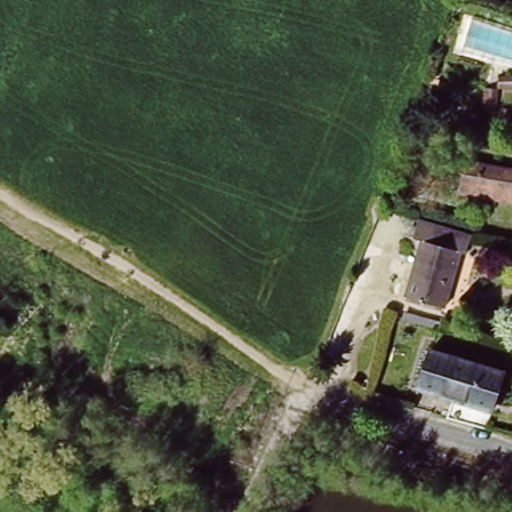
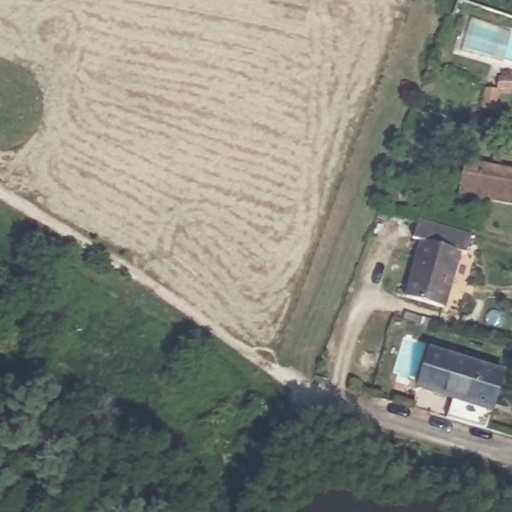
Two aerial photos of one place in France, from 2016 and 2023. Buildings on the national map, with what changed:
unchanged [(497,83),(497,106),(482,106),(485,79),(497,80),(498,69),(512,69),(512,83),(497,83)]
unchanged [(460,195),(467,164),(512,174),(512,206),(460,195)]
unchanged [(471,251),(463,249),(444,306),(405,292),(425,235),(419,232),(425,215),(477,232),(471,251)]
unchanged [(500,372),(487,408),(415,383),(427,347),(500,372)]

